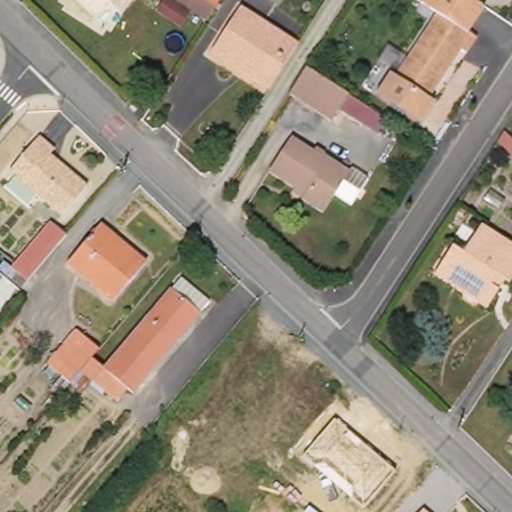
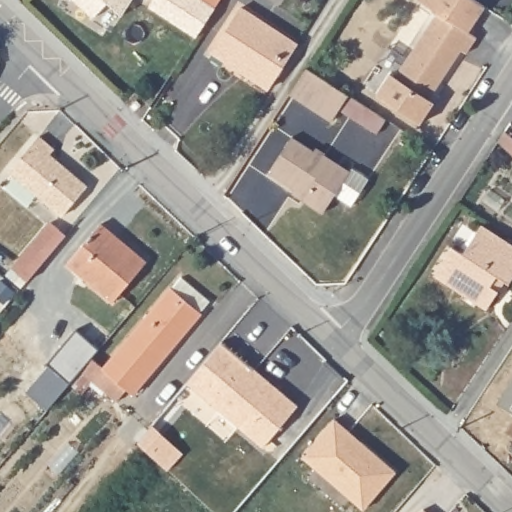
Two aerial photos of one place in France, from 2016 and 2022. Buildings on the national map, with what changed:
unchanged [(81,8),(73,0),(90,0),(81,8)]
unchanged [(90,0),(133,0),(120,17),(111,10),(94,18),(81,8),(90,0)]
unchanged [(219,10),(204,0),(225,0),(219,10)]
unchanged [(485,5),(470,30),(439,10),(423,0),(479,0),(485,4),(485,5)]
unchanged [(300,46),(272,91),(216,54),(244,10),(300,46)]
unchanged [(468,51),(462,48),(431,97),(397,76),(439,10),(470,30),(478,35),(468,51)]
unchanged [(350,97),(333,124),(287,97),(306,68),(350,97)]
unchanged [(431,97),(437,101),(421,126),(375,96),(390,72),(397,76),(431,97)]
unchanged [(324,157),(326,154),(350,168),(351,166),(368,177),(352,204),(335,193),(324,212),(300,197),(302,194),(268,171),(290,137),(324,157)]
unchanged [(40,141),(55,153),(51,157),(88,189),(64,218),(12,174),(40,141)]
unchanged [(71,234),(30,281),(15,268),(55,220),(71,234)]
unchanged [(116,305),(102,294),(70,266),(105,226),(137,254),(150,265),(116,305)]
unchanged [(485,227),(512,245),(512,283),(507,281),(489,309),(437,275),(455,248),(467,255),(485,227)]
unchanged [(214,306),(137,395),(131,391),(121,402),(85,372),(96,358),(109,368),(183,281),(214,306)]
unchanged [(102,351),(96,358),(85,372),(75,384),(51,363),(79,331),(102,351)]
new [(227,339),(302,403),(267,444),(191,380),(227,339)]
unchanged [(303,458),(335,421),(395,473),(361,510),(303,458)]
new [(170,469),(157,458),(140,441),(153,425),(171,443),(184,454),(170,469)]
unchanged [(424,512),(419,512),(421,510),(424,512)]

